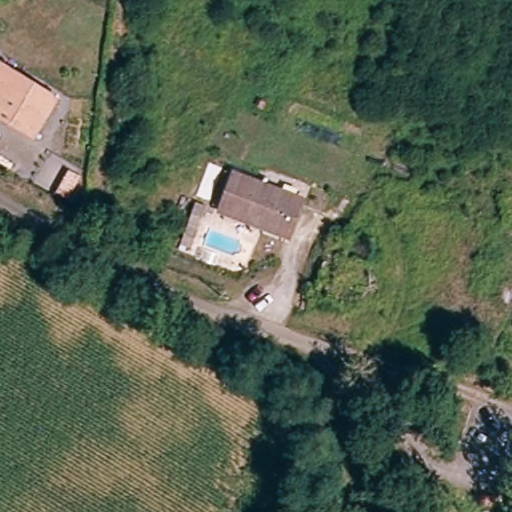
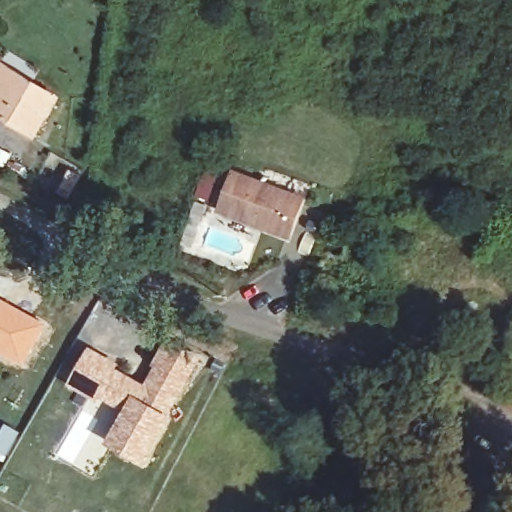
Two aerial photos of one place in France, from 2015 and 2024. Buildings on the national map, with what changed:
unchanged [(30,140),(0,122),(0,70),(30,88),(42,96),(54,103),(32,141),(30,140)]
unchanged [(281,246),(276,244),(211,218),(226,181),(260,194),(296,208),(281,246)]
new [(21,366),(0,354),(0,297),(48,324),(21,366)]
new [(113,445),(133,414),(99,395),(97,400),(74,387),(92,355),(114,367),(111,373),(144,391),(155,380),(160,368),(156,366),(169,344),(199,362),(165,418),(168,420),(144,462),(113,445)]
new [(20,432),(5,457),(0,454),(0,428),(3,422),(20,432)]

